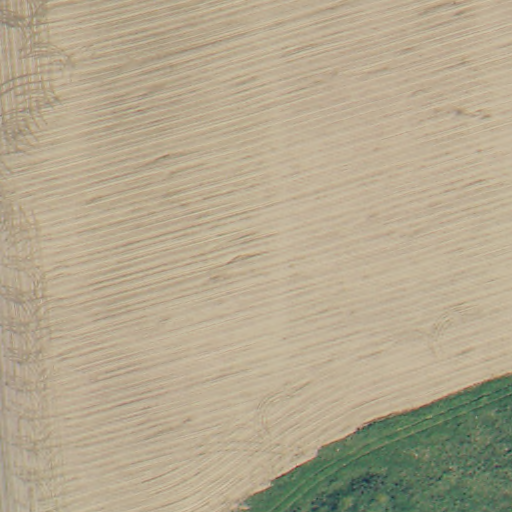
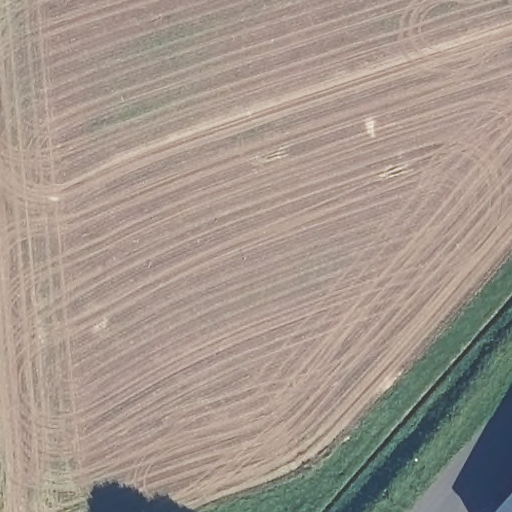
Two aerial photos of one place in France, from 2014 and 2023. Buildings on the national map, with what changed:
new [(512,489),(512,512),(490,512),(512,489)]

